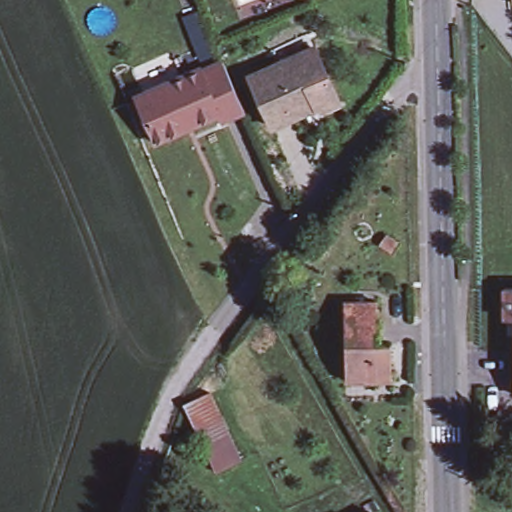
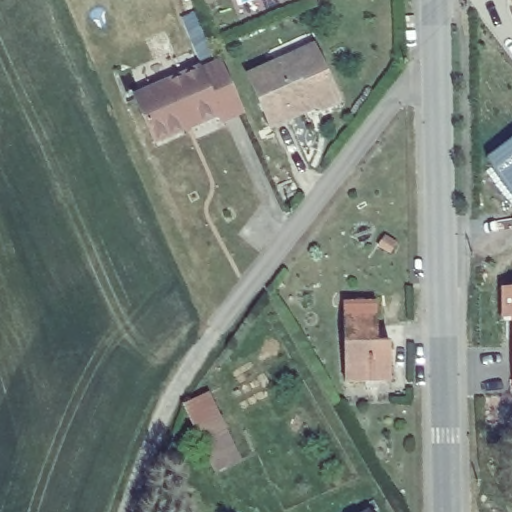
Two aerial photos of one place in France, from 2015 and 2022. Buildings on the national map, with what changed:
unchanged [(314,50),(338,104),(316,114),(314,110),(274,129),(251,79),(314,50)]
unchanged [(212,65),(224,59),(247,109),(235,114),(223,120),(220,113),(157,140),(137,94),(200,66),(201,70),(212,65)]
new [(489,159),(512,142),(512,191),(489,159)]
unchanged [(506,329),(505,289),(512,289),(512,329),(506,329)]
unchanged [(376,302),(378,344),(345,345),(344,304),(376,302)]
unchanged [(378,344),(391,344),(392,382),(347,383),(345,345),(378,344)]
unchanged [(216,471),(186,405),(212,391),(246,456),(220,469),(216,471)]
unchanged [(370,510),(371,512),(367,512),(370,510)]

